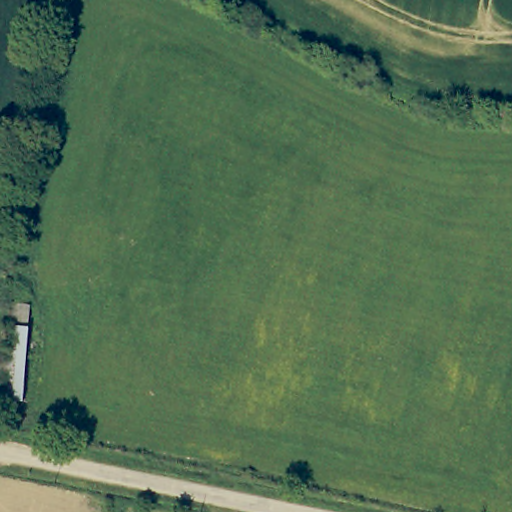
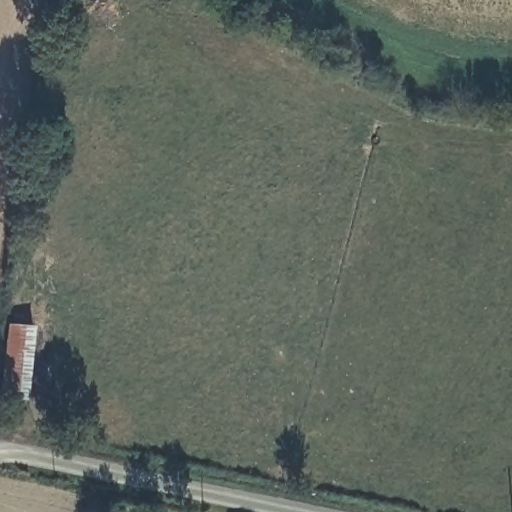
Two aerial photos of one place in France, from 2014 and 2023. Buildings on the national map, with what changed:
unchanged [(11,322),(15,299),(36,303),(26,399),(0,397),(0,391),(6,322),(11,322)]

